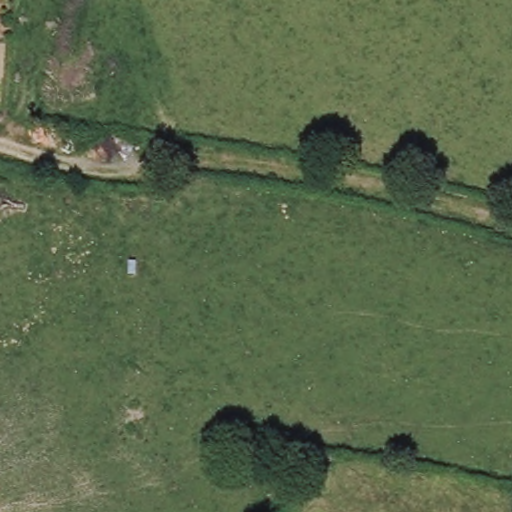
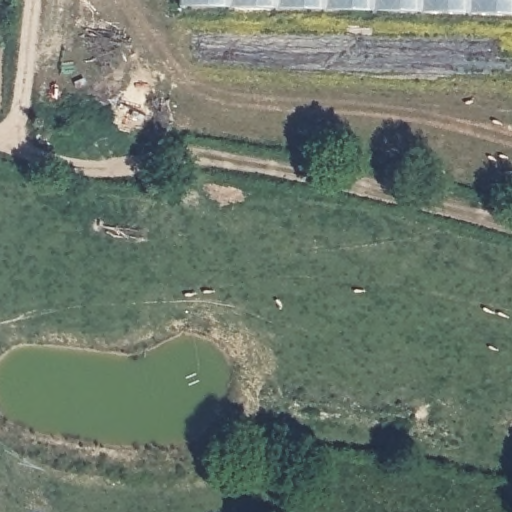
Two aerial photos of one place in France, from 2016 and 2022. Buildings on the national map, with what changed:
demolished [(3,6),(0,6),(0,0),(3,0),(3,6)]
new [(177,5),(177,0),(512,0),(512,13),(177,5)]

